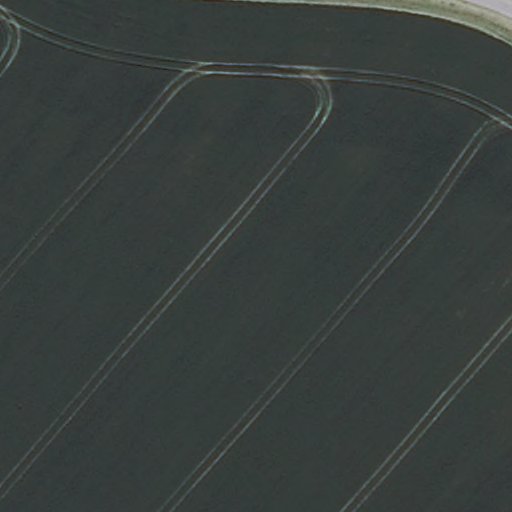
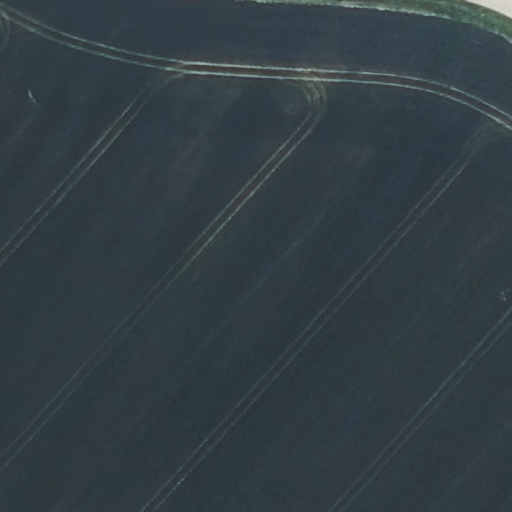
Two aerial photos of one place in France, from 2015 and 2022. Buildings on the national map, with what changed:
[]

